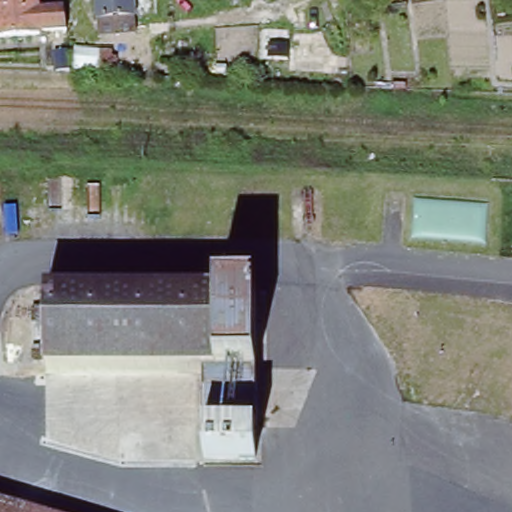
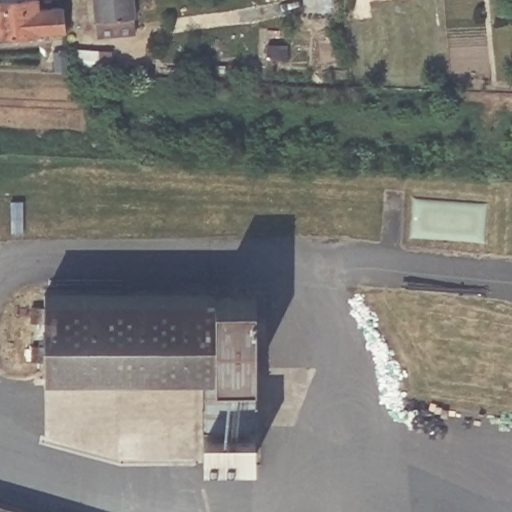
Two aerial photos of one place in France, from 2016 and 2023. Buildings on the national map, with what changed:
unchanged [(64,26),(38,28),(38,31),(0,34),(0,0),(35,0),(35,8),(62,6),(64,26)]
unchanged [(97,17),(96,0),(150,0),(150,7),(134,9),(134,14),(135,28),(98,32),(97,17)]
unchanged [(206,372),(48,371),(48,360),(37,360),(37,346),(47,346),(47,324),(36,324),(36,307),(48,307),(48,295),(260,295),(259,425),(206,425),(206,372)]
unchanged [(213,434),(256,433),(257,455),(213,456),(213,434)]
unchanged [(0,512),(0,498),(47,512),(0,512)]

